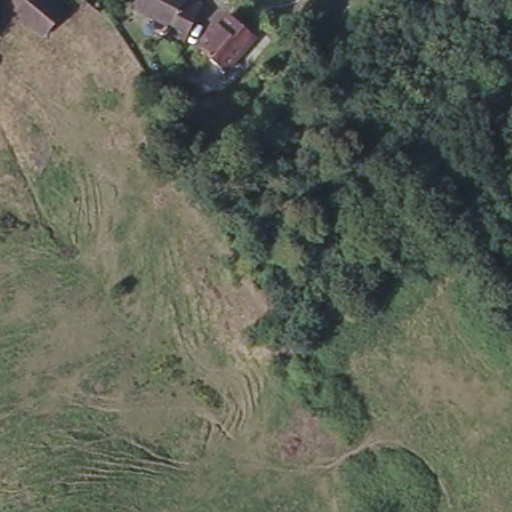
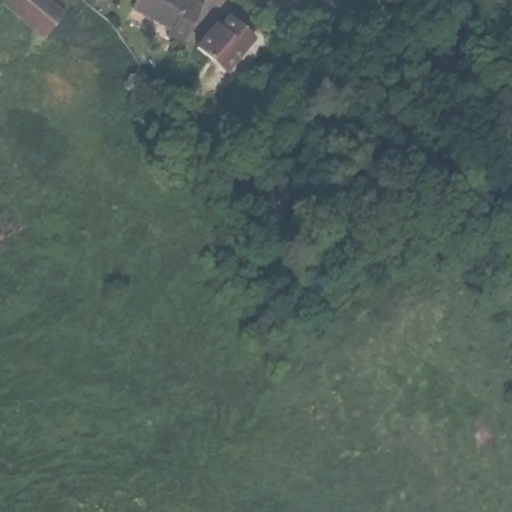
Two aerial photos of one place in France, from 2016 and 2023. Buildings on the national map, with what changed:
unchanged [(37,35),(0,4),(0,0),(45,0),(59,11),(37,35)]
unchanged [(179,44),(161,35),(165,27),(126,7),(130,0),(187,0),(198,5),(179,44)]
unchanged [(221,76),(191,51),(211,28),(215,31),(225,19),(227,21),(251,40),(221,76)]

